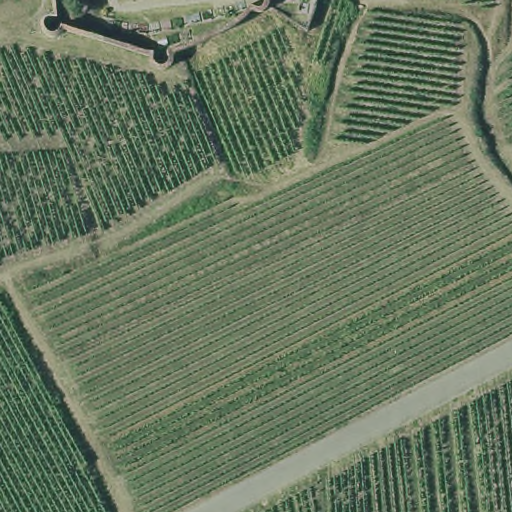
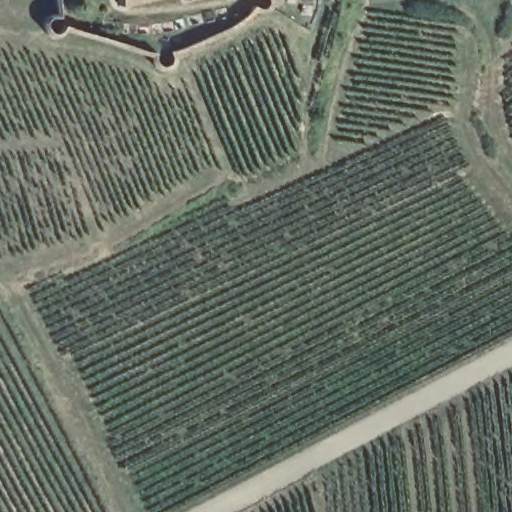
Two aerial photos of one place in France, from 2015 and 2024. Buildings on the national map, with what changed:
unchanged [(123,5),(122,0),(144,0),(123,5)]

